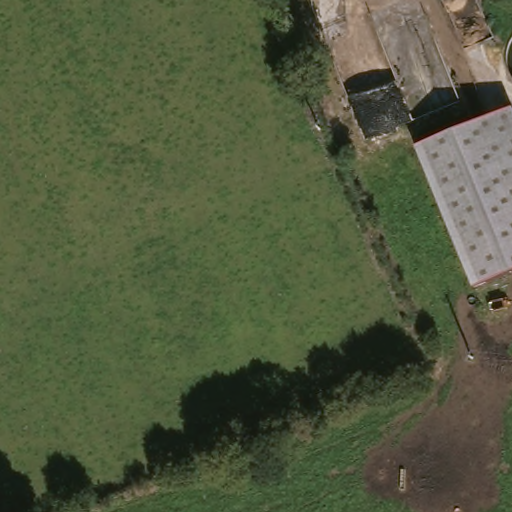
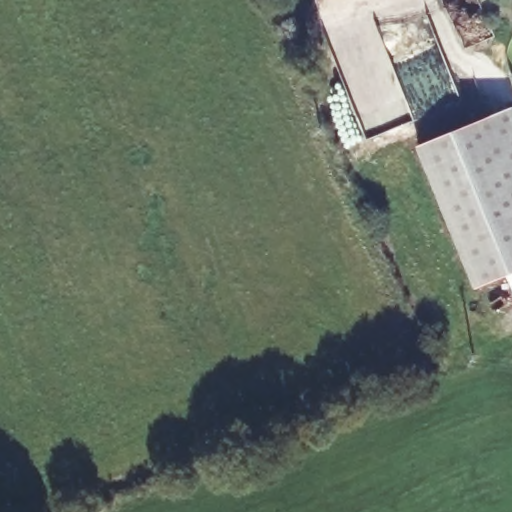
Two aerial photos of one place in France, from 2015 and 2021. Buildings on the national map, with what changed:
unchanged [(512,111),(512,272),(472,288),(416,146),(512,111)]

